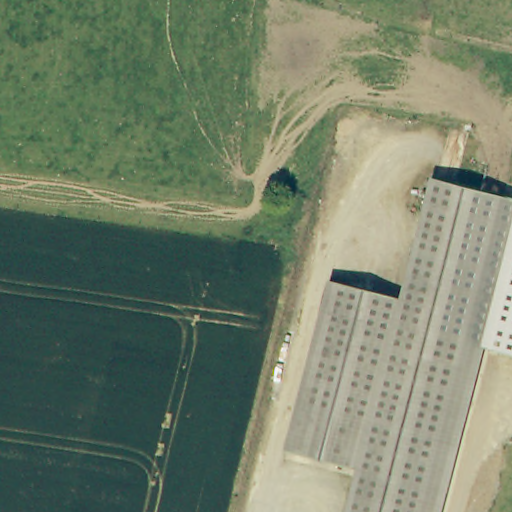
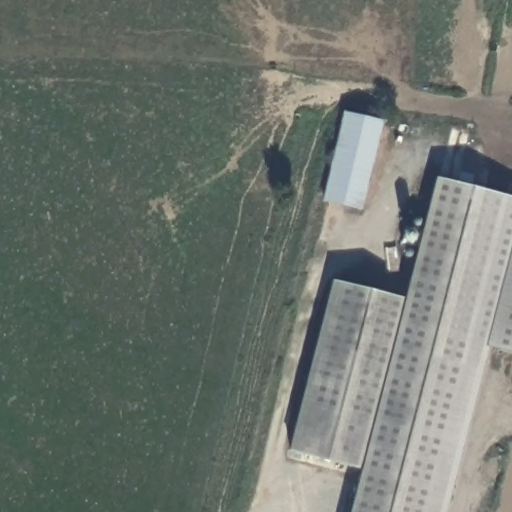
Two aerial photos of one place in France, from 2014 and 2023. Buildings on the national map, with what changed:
new [(361,211),(322,203),(345,113),(384,122),(361,211)]
unchanged [(351,512),(362,466),(405,297),(428,206),(436,178),(512,196),(512,240),(443,512),(351,512)]
unchanged [(512,353),(485,346),(512,240),(512,353)]
unchanged [(290,447),(333,280),(405,297),(362,466),(290,447)]

